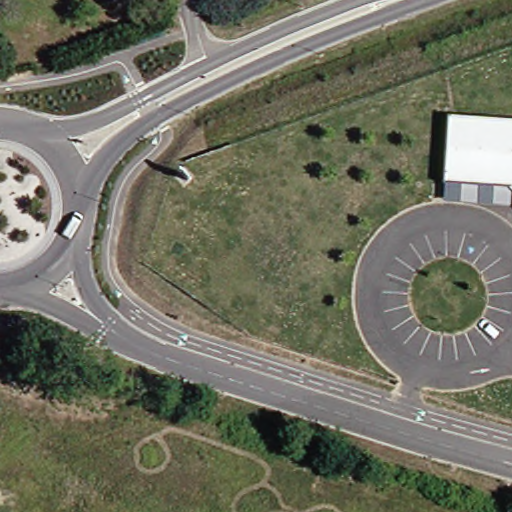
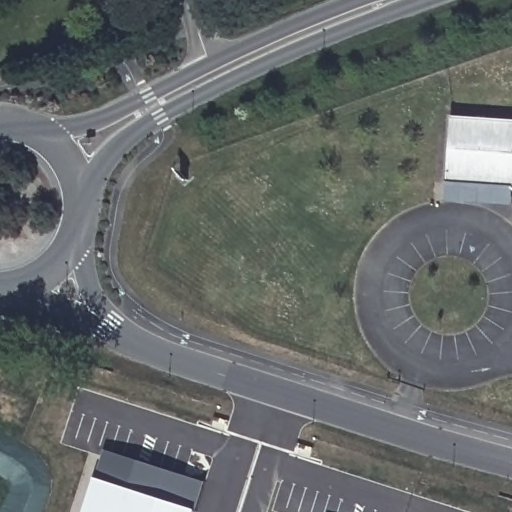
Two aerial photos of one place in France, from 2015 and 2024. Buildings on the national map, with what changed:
unchanged [(451,117),(512,121),(512,208),(445,203),(451,117)]
new [(106,450),(207,483),(197,511),(197,512),(86,512),(96,477),(106,450)]

